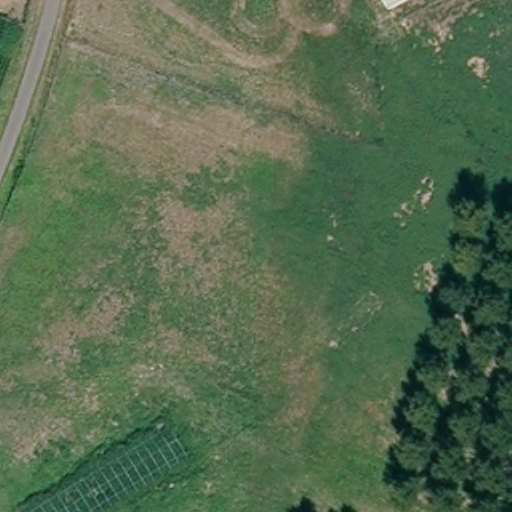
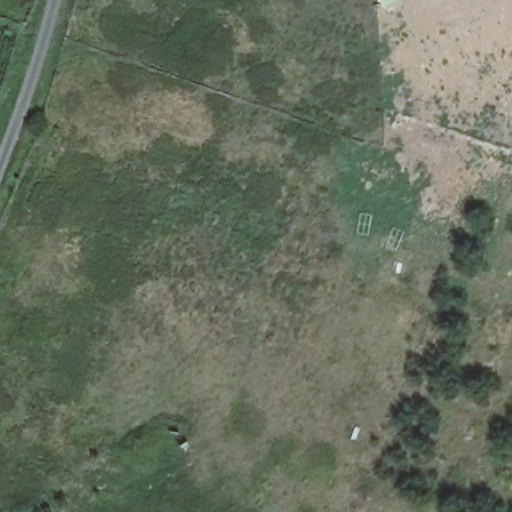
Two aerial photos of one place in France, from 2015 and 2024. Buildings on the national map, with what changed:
unchanged [(382,0),(403,0),(386,9),(382,0)]
demolished [(18,509),(163,422),(187,461),(104,512),(20,512),(18,509)]

